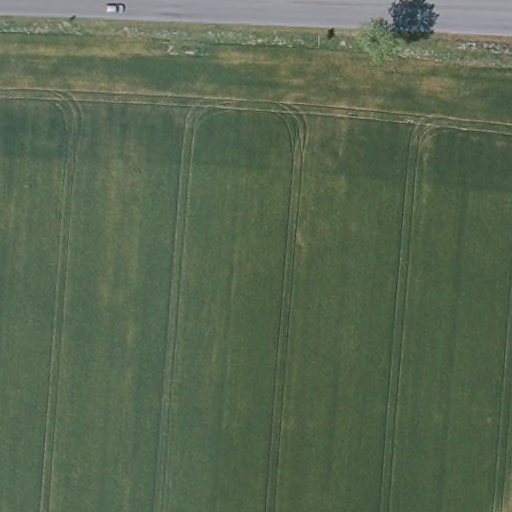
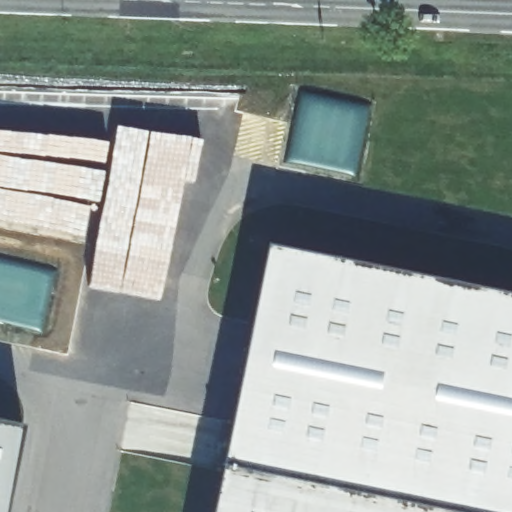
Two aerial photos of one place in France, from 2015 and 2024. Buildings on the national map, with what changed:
new [(272,253),(512,302),(512,512),(218,512),(272,253)]
new [(0,511),(0,428),(15,432),(0,511)]

